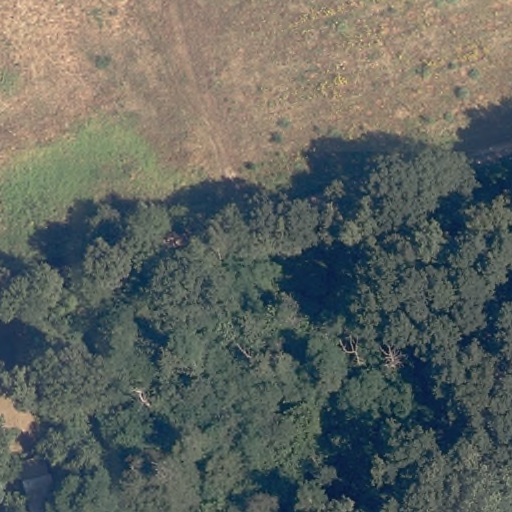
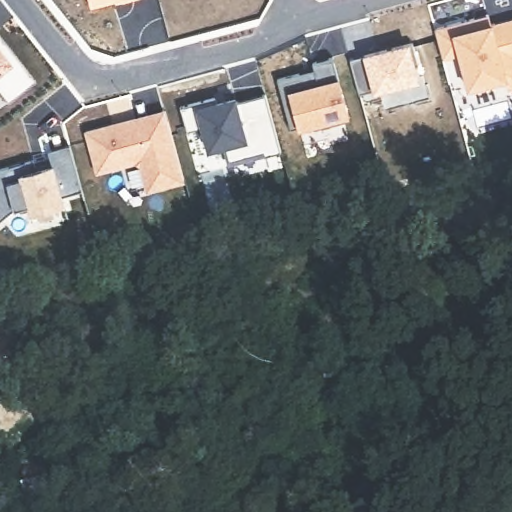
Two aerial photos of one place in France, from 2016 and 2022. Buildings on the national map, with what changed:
new [(138,2),(118,7),(117,5),(87,13),(83,0),(137,0),(138,2)]
new [(485,19),(488,29),(512,22),(512,91),(505,92),(502,82),(466,92),(457,59),(440,64),(432,34),(471,22),(485,19)]
new [(409,47),(415,69),(410,71),(414,84),(397,88),(399,92),(373,99),(371,95),(356,99),(347,65),(409,47)]
new [(3,111),(0,107),(0,51),(30,89),(3,111)]
new [(310,127),(288,134),(274,84),(296,77),(297,81),(312,77),(309,67),(330,61),(346,123),(328,128),(311,132),(310,127)]
new [(212,103),(213,107),(232,102),(233,107),(262,99),(278,156),(262,160),(261,156),(226,166),(222,151),(205,156),(199,132),(183,137),(177,112),(212,103)]
new [(162,113),(165,123),(181,182),(160,189),(158,184),(143,187),(138,167),(132,164),(94,174),(84,135),(131,122),(162,113)]
new [(33,177),(48,172),(44,157),(66,152),(79,197),(57,204),(59,212),(26,220),(24,212),(10,217),(0,224),(0,175),(30,167),(33,177)]
unchanged [(64,512),(36,512),(28,482),(54,475),(64,512)]

